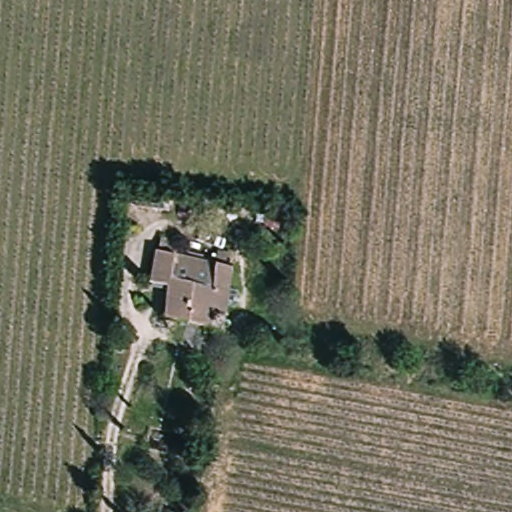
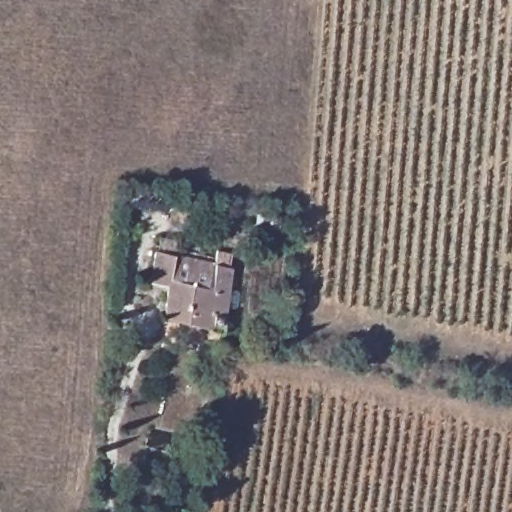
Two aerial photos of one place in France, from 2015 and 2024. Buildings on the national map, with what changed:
unchanged [(153,196),(152,208),(130,206),(130,194),(153,196)]
unchanged [(158,248),(163,249),(164,238),(180,242),(179,255),(217,262),(220,250),(232,252),(230,268),(233,268),(224,334),(220,331),(168,318),(170,285),(152,281),(158,248)]

